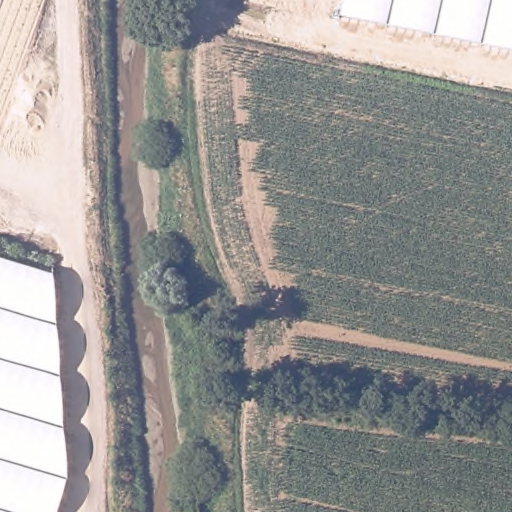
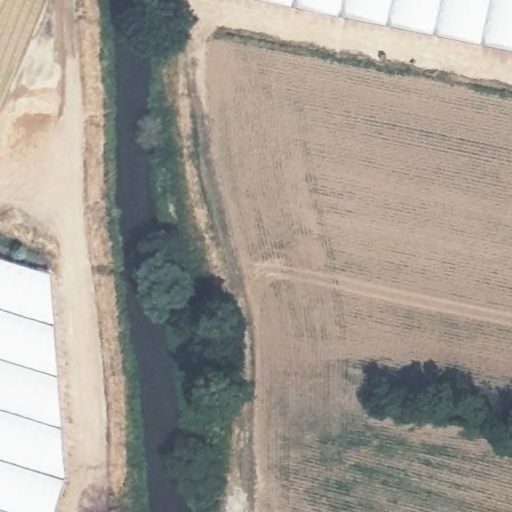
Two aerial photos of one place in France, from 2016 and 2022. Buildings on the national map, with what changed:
new [(255,0),(344,0),(340,17),(255,0)]
unchanged [(344,0),(512,0),(512,52),(340,17),(344,0)]
unchanged [(65,478),(55,512),(0,512),(0,261),(50,277),(65,478)]

